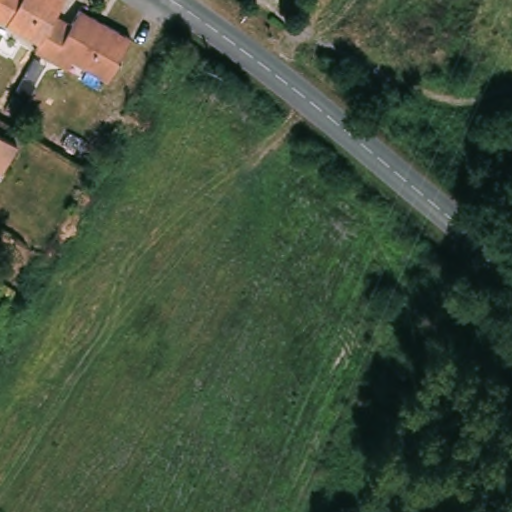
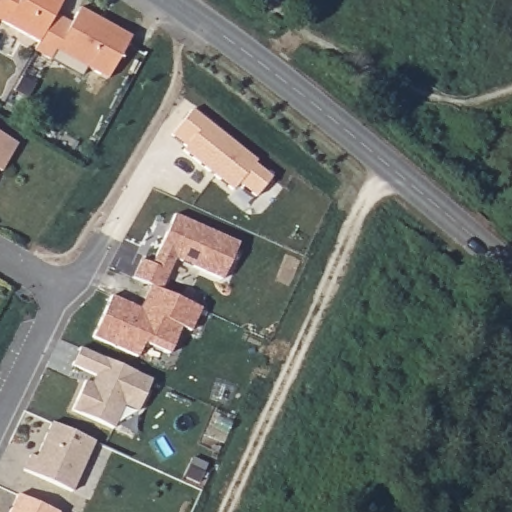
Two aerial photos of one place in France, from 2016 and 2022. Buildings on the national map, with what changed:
unchanged [(63,2),(55,16),(39,45),(0,21),(0,0),(65,0),(63,2)]
unchanged [(53,60),(35,50),(39,45),(55,16),(71,25),(81,9),(133,40),(109,80),(74,60),(68,69),(53,60)]
new [(191,118),(255,169),(253,172),(270,186),(254,206),(237,192),(231,199),(182,158),(185,154),(171,143),(191,118)]
unchanged [(2,170),(0,169),(0,131),(18,142),(2,170)]
new [(140,267),(150,272),(173,223),(232,250),(216,283),(173,263),(157,297),(149,293),(132,286),(140,267)]
new [(109,303),(138,316),(149,293),(157,297),(199,316),(188,339),(179,335),(167,362),(142,351),(136,364),(91,344),(109,303)]
new [(86,379),(70,372),(78,354),(149,387),(134,419),(121,412),(110,435),(69,417),(82,388),(86,379)]
new [(28,461),(33,464),(49,429),(91,449),(68,498),(21,476),(28,461)]
new [(39,512),(9,512),(14,501),(39,512)]

